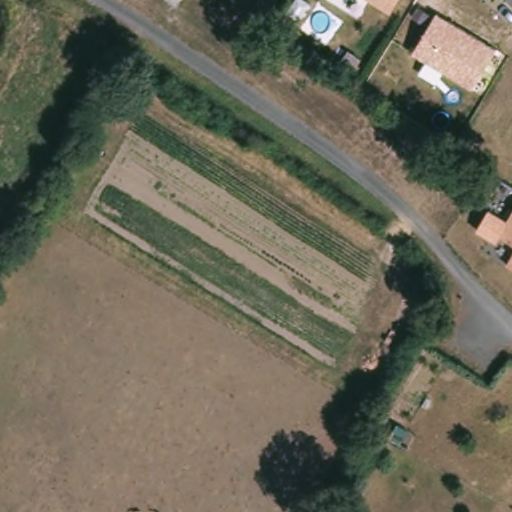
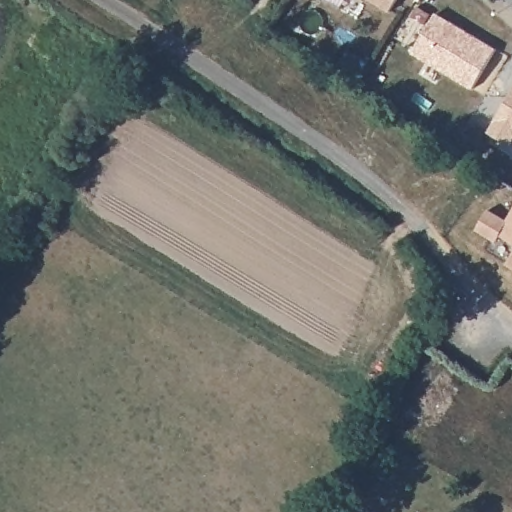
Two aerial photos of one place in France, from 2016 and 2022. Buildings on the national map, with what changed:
unchanged [(391,12),(369,0),(398,0),(391,12)]
unchanged [(473,90),(411,55),(436,13),(498,47),(473,90)]
new [(512,142),(510,145),(488,132),(512,93),(512,142)]
unchanged [(497,242),(475,231),(486,209),(507,220),(512,213),(512,243),(500,236),(497,242)]
unchanged [(512,257),(512,270),(506,267),(512,257)]

